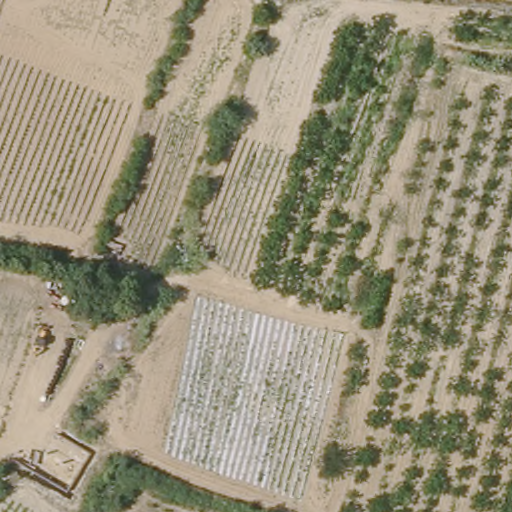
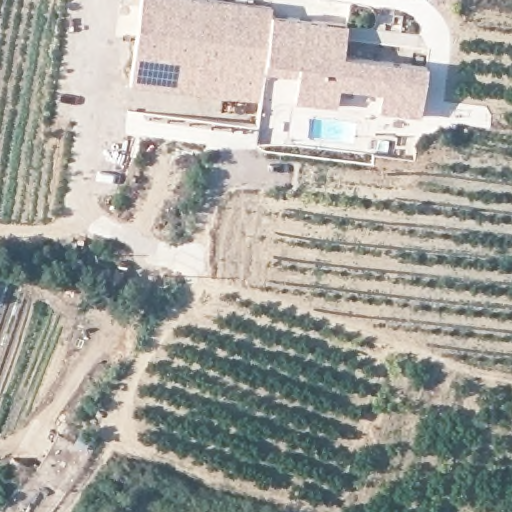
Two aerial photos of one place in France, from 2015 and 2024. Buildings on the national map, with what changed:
new [(224,0),(272,6),(270,15),(347,24),(343,56),(427,65),(422,119),(379,112),(382,94),(339,89),(337,107),(294,101),(297,77),(265,72),(261,102),(129,87),(140,0),(224,0)]
unchanged [(117,267),(115,282),(85,279),(87,262),(117,267)]

